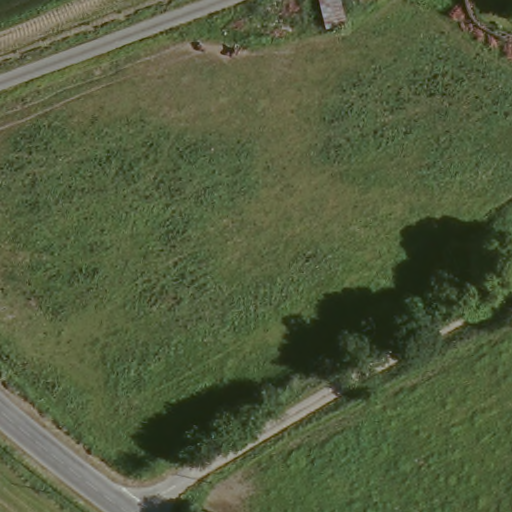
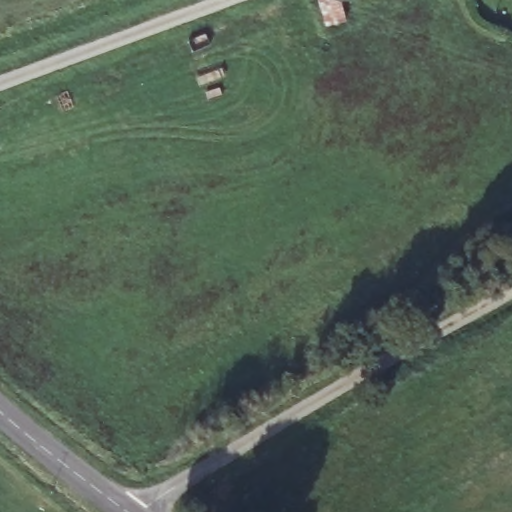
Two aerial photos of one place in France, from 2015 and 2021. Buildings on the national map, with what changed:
unchanged [(316,0),(338,0),(342,26),(320,29),(316,0)]

